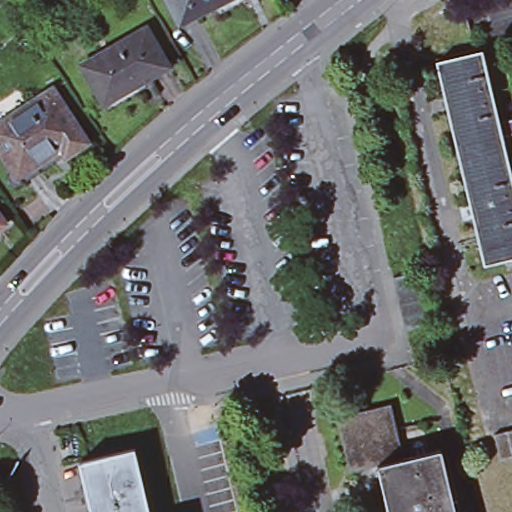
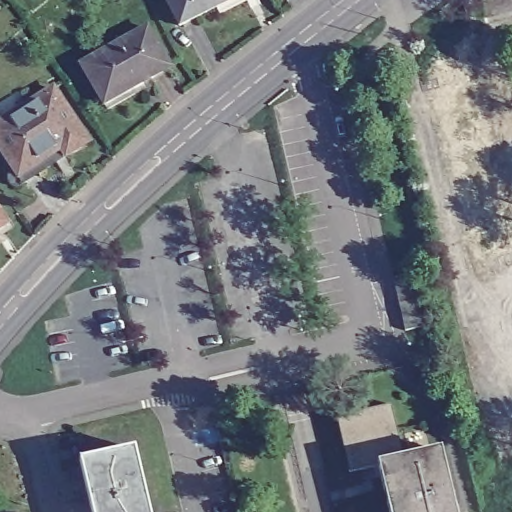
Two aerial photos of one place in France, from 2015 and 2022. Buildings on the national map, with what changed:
unchanged [(216,14),(213,7),(175,25),(164,0),(244,0),(216,14)]
unchanged [(146,93),(109,115),(105,108),(80,65),(145,28),(170,71),(142,87),(146,93)]
demolished [(512,198),(512,257),(480,264),(434,61),(479,51),(512,198)]
unchanged [(14,185),(10,184),(8,182),(7,179),(7,176),(9,173),(12,171),(0,153),(0,121),(51,89),(85,141),(62,156),(20,183),(17,185),(14,185)]
unchanged [(0,227),(0,222),(2,226),(0,227)]
unchanged [(392,275),(422,269),(432,324),(404,328),(392,275)]
unchanged [(350,472),(338,417),(392,405),(405,460),(379,466),(350,472)]
unchanged [(390,512),(379,466),(405,460),(441,452),(455,512),(390,512)]
unchanged [(132,453),(146,512),(90,512),(79,465),(132,453)]

